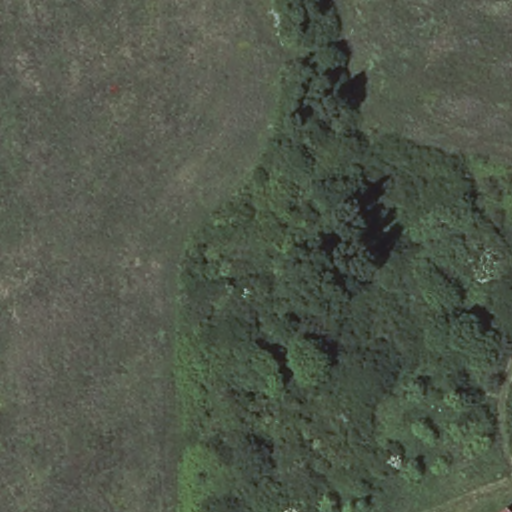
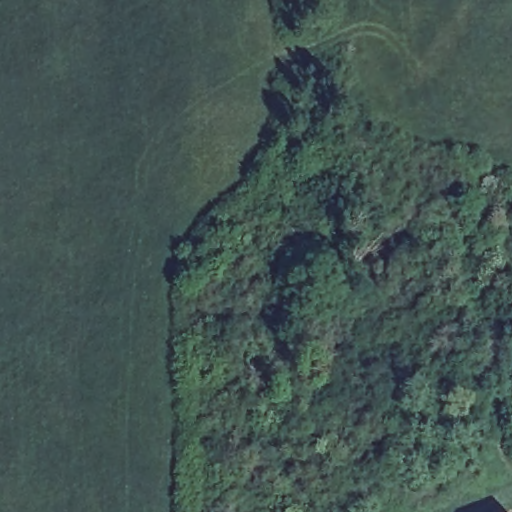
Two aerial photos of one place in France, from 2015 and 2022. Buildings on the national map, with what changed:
unchanged [(510,512),(512,510),(512,512),(510,512)]

